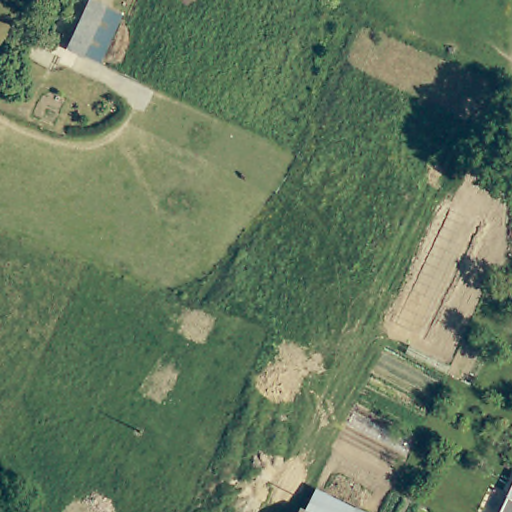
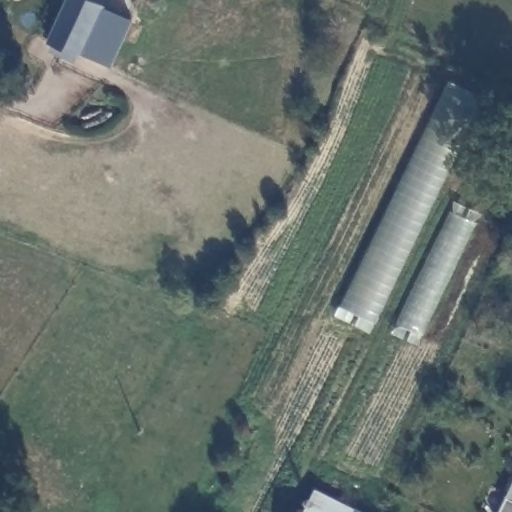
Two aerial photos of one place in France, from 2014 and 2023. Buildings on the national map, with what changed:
unchanged [(111,59),(95,54),(95,55),(57,41),(74,0),(103,0),(115,5),(129,11),(111,59)]
new [(339,307),(442,91),(482,109),(377,324),(339,307)]
new [(397,324),(449,209),(478,222),(422,335),(397,324)]
new [(366,512),(316,512),(306,507),(316,488),(366,512)]
unchanged [(507,512),(512,501),(512,512),(507,512)]
unchanged [(297,512),(301,505),(316,512),(297,512)]

